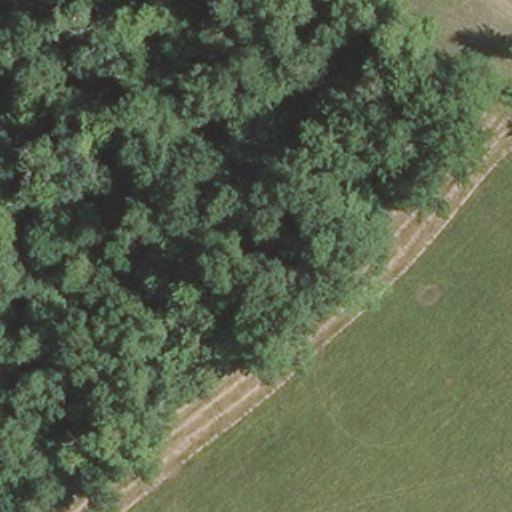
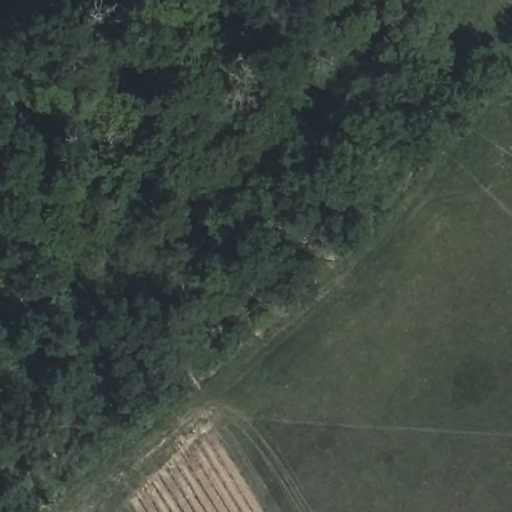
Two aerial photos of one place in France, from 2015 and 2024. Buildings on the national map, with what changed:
[]

